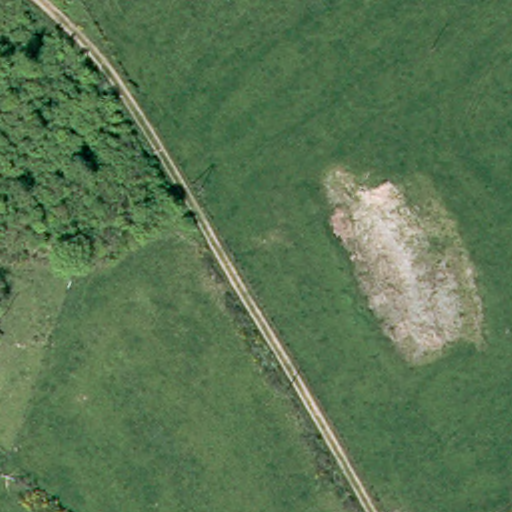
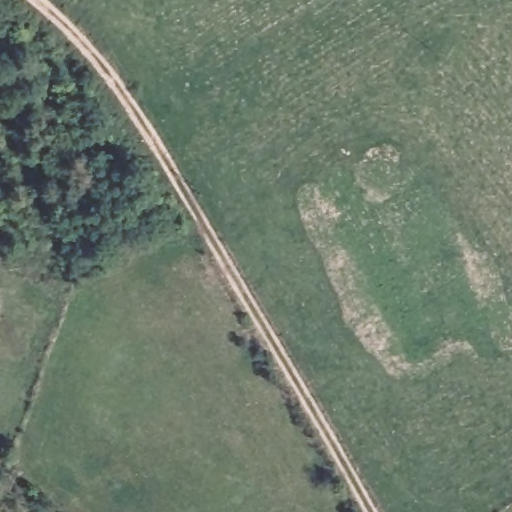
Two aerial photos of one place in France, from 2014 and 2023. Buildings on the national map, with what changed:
[]

